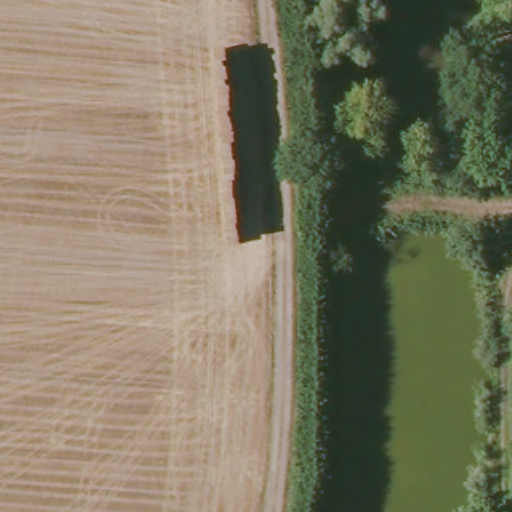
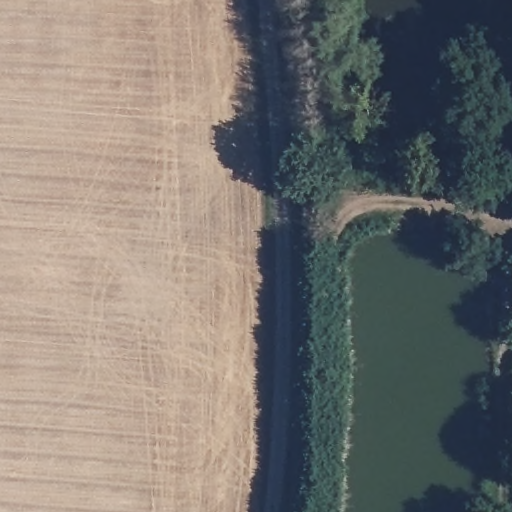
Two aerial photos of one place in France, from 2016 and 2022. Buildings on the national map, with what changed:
unchanged [(512,113),(512,144),(512,135),(492,134),(492,112),(512,113)]

